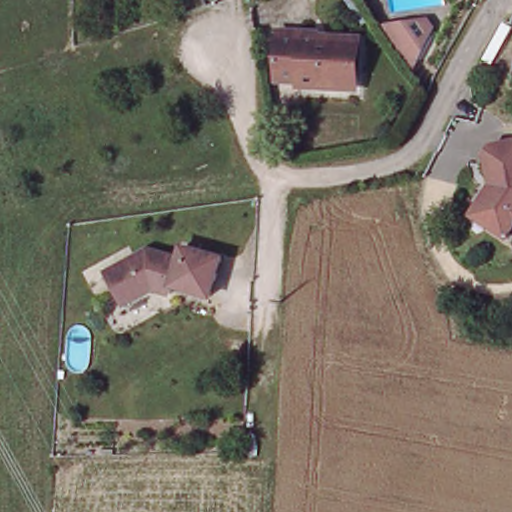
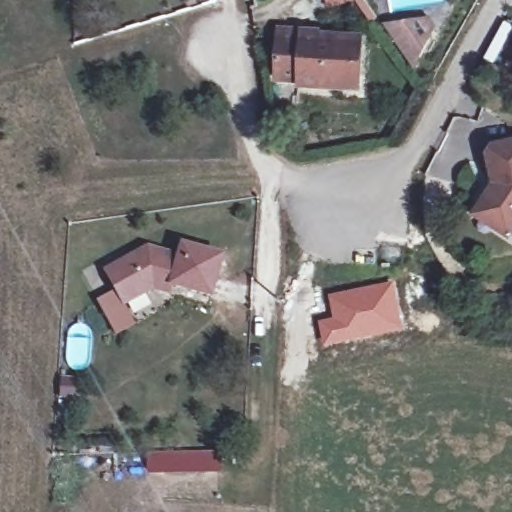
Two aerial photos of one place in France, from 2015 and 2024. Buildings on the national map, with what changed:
unchanged [(395,40),(401,36),(392,23),(426,18),(434,29),(413,66),(395,40)]
unchanged [(319,37),(318,42),(356,44),(353,92),(299,87),(299,81),(275,80),(278,34),(319,37)]
unchanged [(474,202),(491,179),(485,154),(496,140),(512,137),(512,207),(512,221),(503,234),(489,223),(469,209),(474,202)]
unchanged [(146,245),(179,252),(182,242),(221,252),(209,291),(173,282),(171,290),(151,284),(120,301),(103,270),(146,245)]
new [(332,316),(328,293),(394,280),(404,330),(322,347),(316,320),(332,316)]
new [(221,452),(221,474),(146,475),(147,454),(221,452)]

